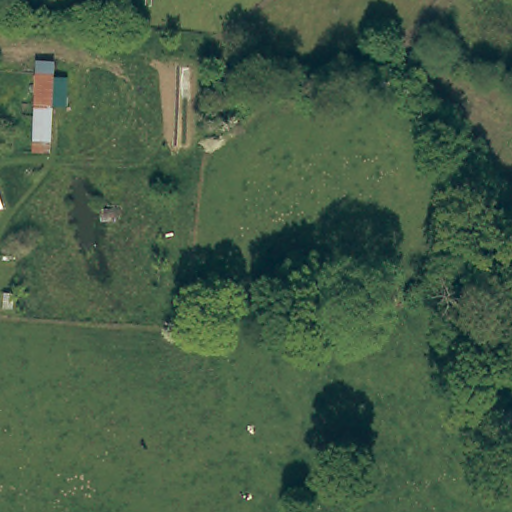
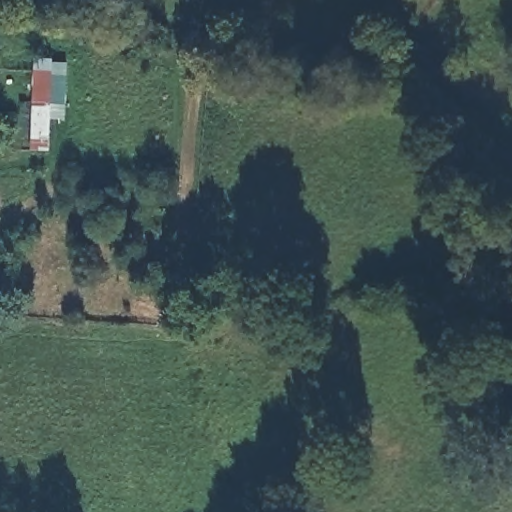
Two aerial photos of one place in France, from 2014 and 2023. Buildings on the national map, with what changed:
unchanged [(45,154),(29,153),(32,73),(49,74),(45,154)]

